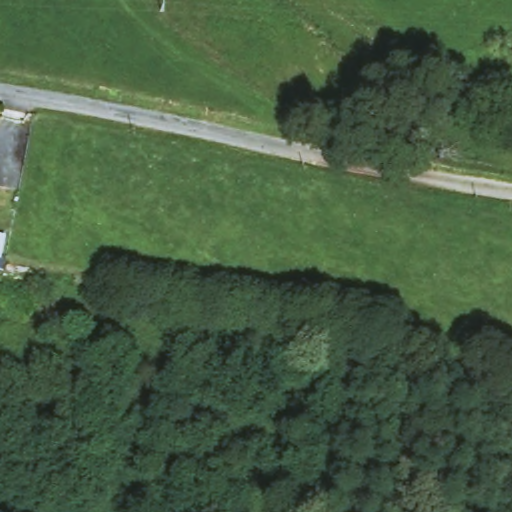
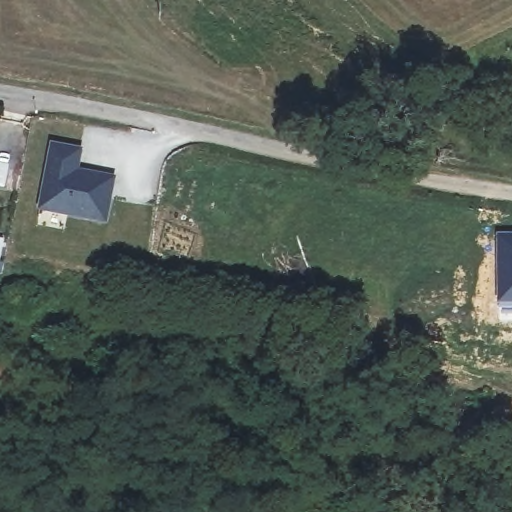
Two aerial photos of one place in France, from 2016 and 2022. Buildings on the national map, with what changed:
new [(83,150),(80,170),(117,177),(107,224),(39,211),(51,144),(83,150)]

